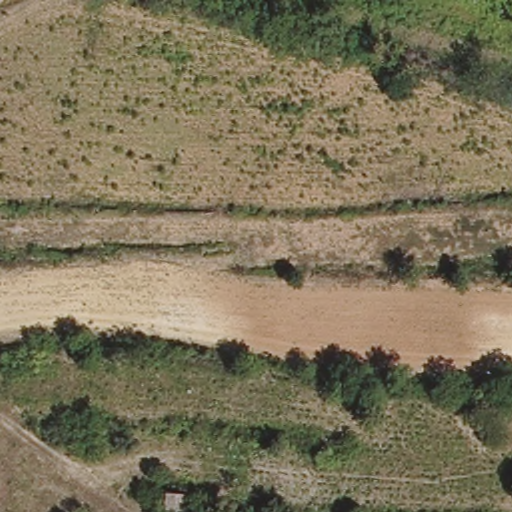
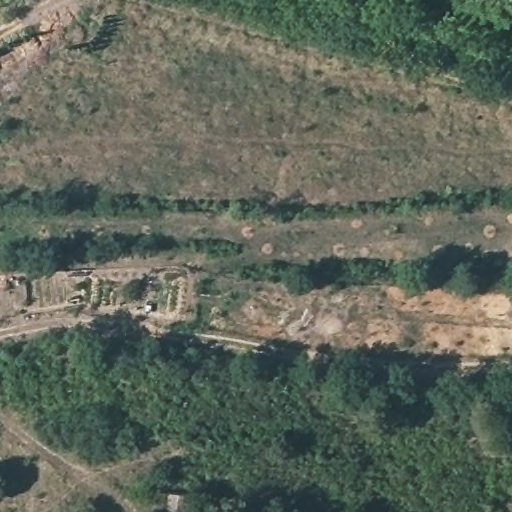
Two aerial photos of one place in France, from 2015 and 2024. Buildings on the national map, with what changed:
unchanged [(167,491),(188,494),(186,511),(165,509),(167,491)]

